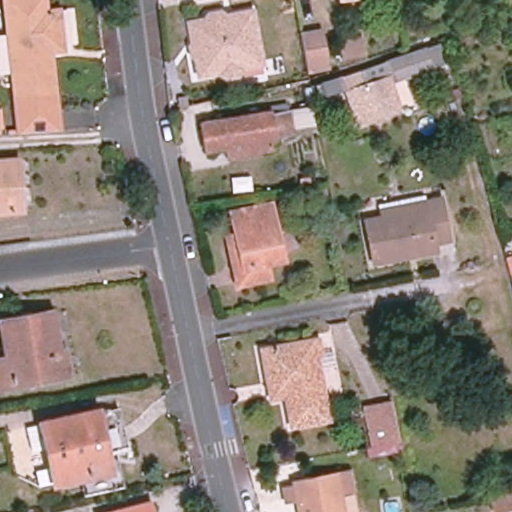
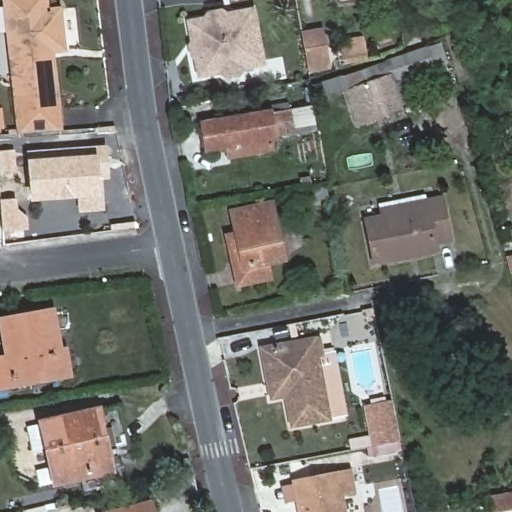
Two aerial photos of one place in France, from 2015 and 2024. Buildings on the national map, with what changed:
unchanged [(62,50),(50,52),(57,121),(17,127),(2,0),(43,0),(45,11),(57,10),(62,50)]
unchanged [(262,63),(243,67),(238,75),(226,77),(219,72),(199,76),(196,58),(192,56),(190,46),(193,43),(189,22),(205,19),(209,13),(221,10),(227,15),(252,10),(262,63)]
unchanged [(302,34),(284,37),(280,13),(298,10),(302,34)]
unchanged [(333,72),(314,75),(307,39),(326,36),(333,72)]
unchanged [(364,55),(346,59),(342,41),(361,38),(364,55)]
unchanged [(397,108),(354,122),(341,86),(323,92),(320,83),(338,76),(421,49),(435,44),(441,61),(427,66),(387,80),(397,108)]
unchanged [(229,156),(228,146),(206,149),(202,122),(270,110),(271,111),(291,108),(313,104),(317,131),(296,134),(296,132),(271,134),(273,149),(229,156)]
unchanged [(5,128),(0,128),(0,107),(3,107),(5,128)]
new [(30,202),(26,151),(107,145),(111,177),(102,180),(104,210),(79,212),(78,197),(30,202)]
demolished [(24,210),(0,212),(0,159),(19,157),(24,210)]
unchanged [(375,267),(367,223),(384,220),(382,213),(381,207),(426,199),(427,205),(442,202),(450,244),(436,247),(437,255),(375,267)]
unchanged [(272,202),(285,259),(267,263),(271,278),(238,284),(229,245),(227,235),(237,233),(232,210),(272,202)]
unchanged [(512,242),(502,245),(499,232),(512,229),(512,231),(512,242)]
unchanged [(70,374),(0,387),(0,358),(7,356),(1,319),(53,310),(61,350),(66,349),(70,374)]
unchanged [(270,390),(263,349),(314,338),(320,338),(322,354),(318,354),(329,418),(292,425),(286,394),(272,398),(270,390)]
unchanged [(370,450),(368,441),(373,440),(366,401),(392,396),(400,434),(399,435),(401,444),(370,450)]
unchanged [(119,451),(107,454),(112,475),(55,488),(47,452),(33,456),(27,431),(42,428),(110,412),(119,451)]
unchanged [(286,500),(283,487),(294,485),(293,480),(351,470),(352,479),(354,488),(341,491),(345,512),(299,512),(296,499),(286,500)]
unchanged [(493,512),(490,495),(512,491),(512,509),(496,512),(493,512)]
unchanged [(33,505),(19,509),(15,498),(30,494),(33,505)]
unchanged [(153,512),(115,512),(151,503),(153,512)]

